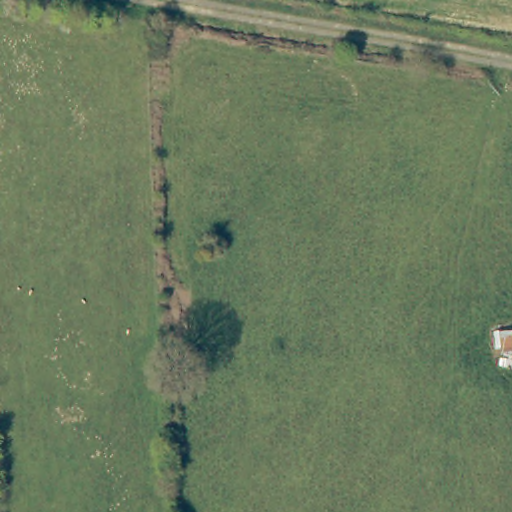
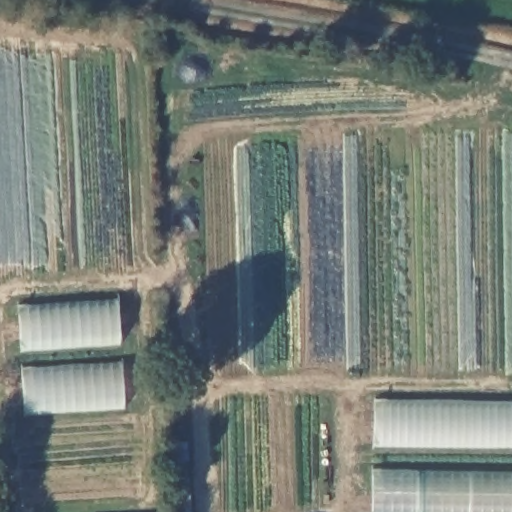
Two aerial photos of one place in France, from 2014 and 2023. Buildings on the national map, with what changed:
new [(122,342),(22,351),(19,307),(118,299),(122,342)]
new [(127,408),(26,416),(22,369),(124,362),(127,408)]
new [(374,448),(374,399),(512,400),(512,448),(374,448)]
new [(372,470),(512,471),(512,512),(371,512),(372,470)]

